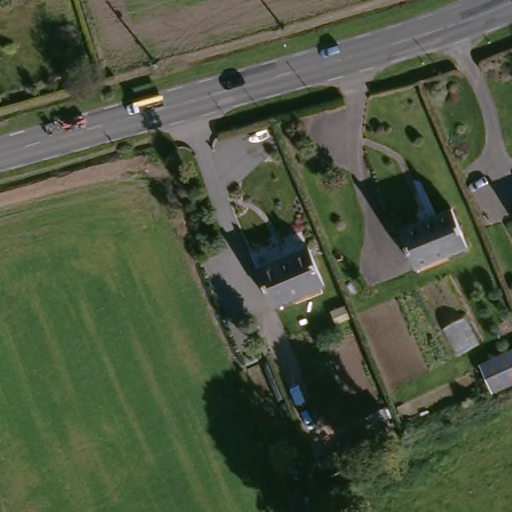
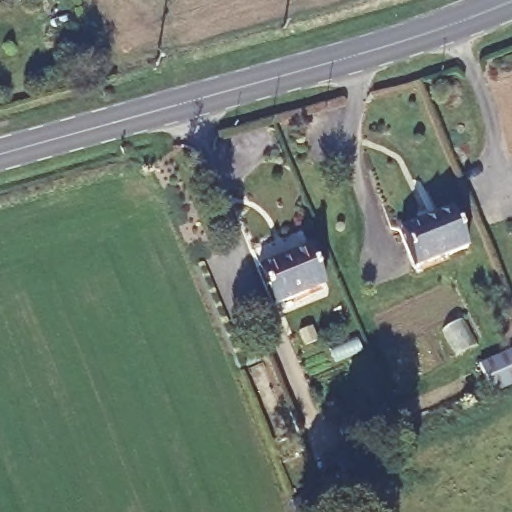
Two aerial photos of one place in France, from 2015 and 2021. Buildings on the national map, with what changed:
unchanged [(399,236),(449,212),(466,251),(416,275),(399,236)]
unchanged [(256,270),(304,250),(322,286),(276,307),(256,270)]
unchanged [(484,399),(472,369),(512,353),(512,387),(484,399)]
unchanged [(329,478),(324,465),(354,449),(348,434),(398,412),(408,436),(359,459),(361,463),(329,478)]

